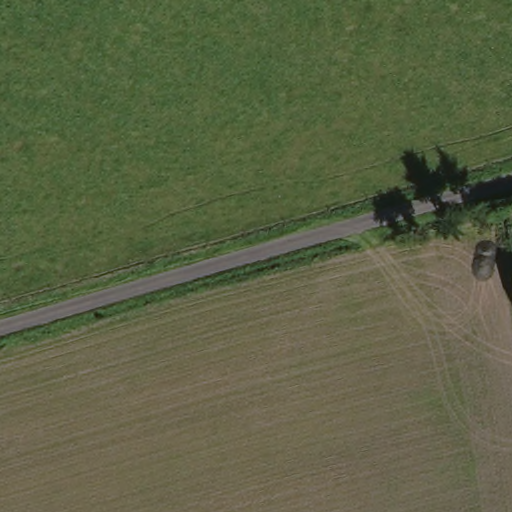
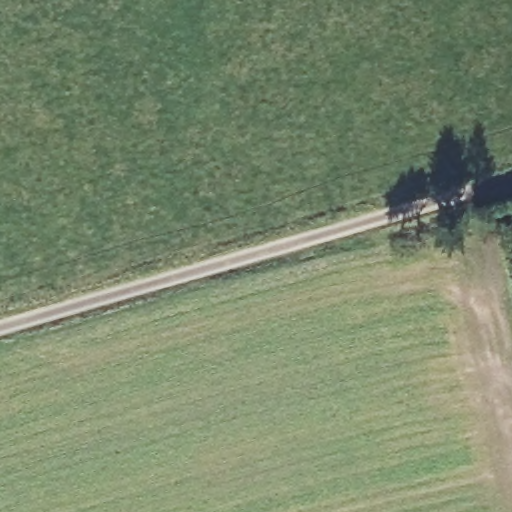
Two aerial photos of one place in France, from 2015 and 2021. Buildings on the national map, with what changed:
unchanged [(509,272),(512,271),(512,288),(509,272)]

